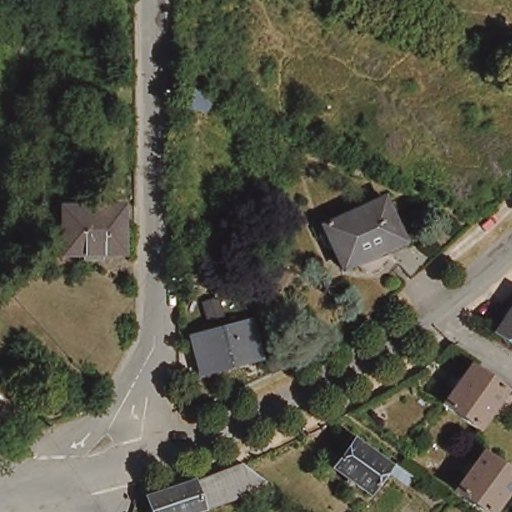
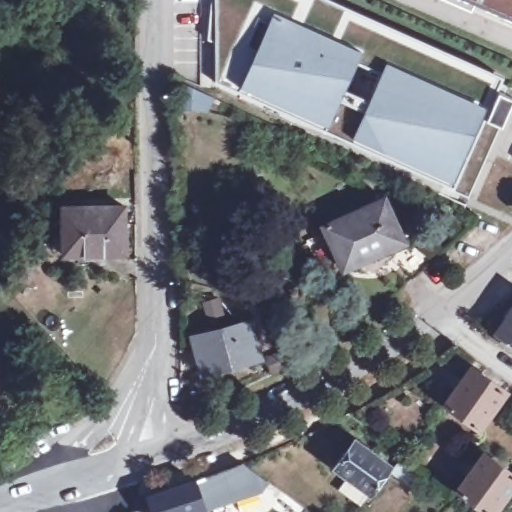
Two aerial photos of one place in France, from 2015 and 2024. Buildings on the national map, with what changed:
new [(486,119),(454,186),(217,82),(216,41),(208,40),(213,0),(328,0),(502,78),(498,94),(512,100),(512,104),(502,125),(486,119)]
new [(471,10),(447,0),(475,0),(471,10)]
new [(512,16),(477,0),(512,0),(512,16)]
unchanged [(385,252),(343,271),(322,230),(383,200),(407,244),(430,266),(413,280),(385,252)]
unchanged [(65,255),(63,208),(125,206),(125,254),(65,255)]
unchanged [(512,346),(495,334),(512,310),(512,346)]
unchanged [(210,374),(198,338),(258,320),(268,355),(210,374)]
unchanged [(469,366),(503,390),(489,412),(477,428),(442,403),(469,366)]
unchanged [(388,463),(369,490),(333,465),(354,438),(388,463)]
unchanged [(512,483),(492,512),(484,512),(455,490),(480,453),(512,475),(512,483)]
unchanged [(267,479),(262,487),(187,512),(153,512),(147,493),(243,461),(267,479)]

